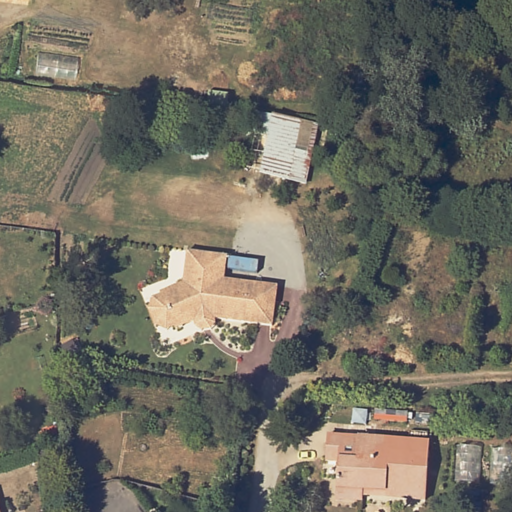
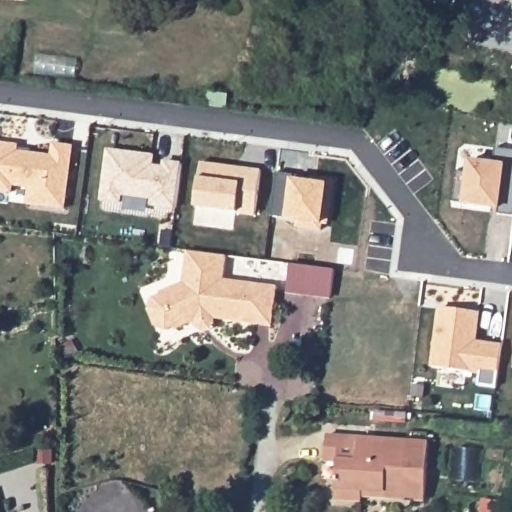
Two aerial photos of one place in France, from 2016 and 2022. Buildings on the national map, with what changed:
demolished [(301,158),(296,182),(258,173),(265,136),(250,133),(254,114),(308,125),(301,158)]
new [(19,143),(18,149),(51,153),(52,141),(74,144),(65,210),(25,204),(27,187),(13,186),(12,192),(0,191),(0,141),(19,143)]
new [(106,147),(156,153),(154,164),(162,165),(163,159),(183,161),(177,209),(150,206),(151,199),(121,195),(120,203),(99,200),(106,147)]
new [(469,173),(471,161),(494,164),(496,148),(512,151),(512,217),(498,215),(499,209),(452,203),(457,171),(469,173)]
new [(200,160),(262,169),(256,215),(195,207),(200,160)]
new [(277,172),(335,178),(329,225),(323,225),(321,232),(295,228),(296,221),(285,219),(285,217),(272,215),(277,172)]
demolished [(404,274),(398,273),(406,224),(436,228),(433,254),(445,255),(437,303),(402,295),(404,274)]
unchanged [(213,330),(197,332),(193,327),(194,323),(175,330),(174,328),(165,331),(154,326),(147,311),(152,299),(160,295),(159,293),(182,284),(187,252),(227,257),(223,281),(277,288),(271,328),(214,320),(216,325),(213,330)]
new [(290,266),(335,272),(331,298),(286,292),(290,266)]
new [(438,306),(481,311),(477,340),(503,342),(497,389),(477,387),(478,373),(431,366),(438,306)]
unchanged [(426,501),(403,499),(403,493),(364,490),(363,500),(336,498),(338,462),(325,460),(327,435),(429,443),(426,501)]

